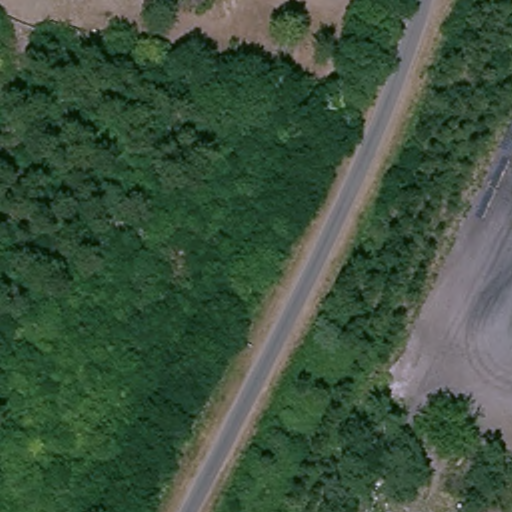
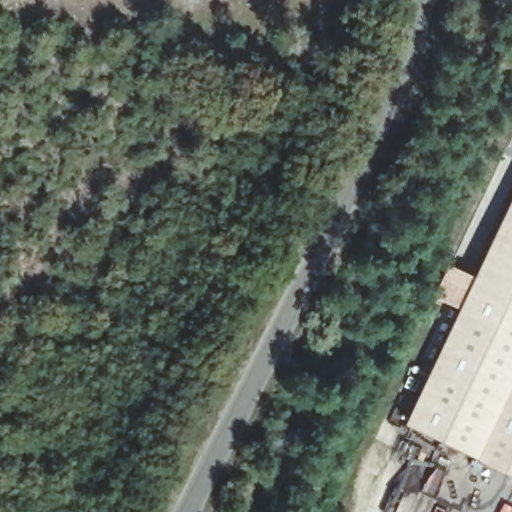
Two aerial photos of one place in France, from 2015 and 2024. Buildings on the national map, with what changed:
new [(404,425),(512,199),(512,475),(404,425)]

